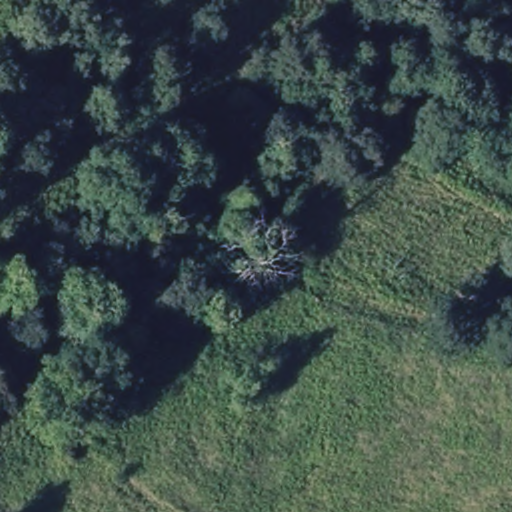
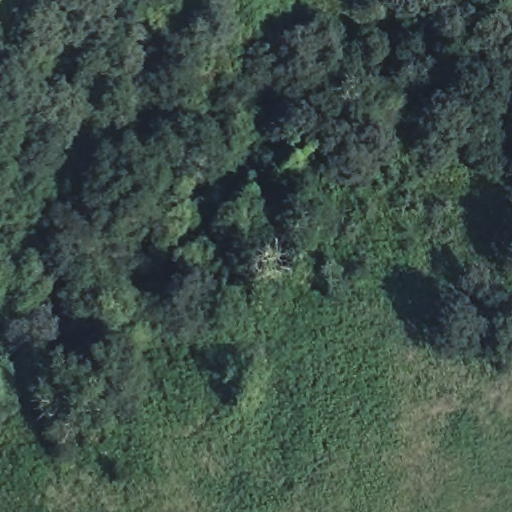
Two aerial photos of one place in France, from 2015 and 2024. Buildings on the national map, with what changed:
[]

